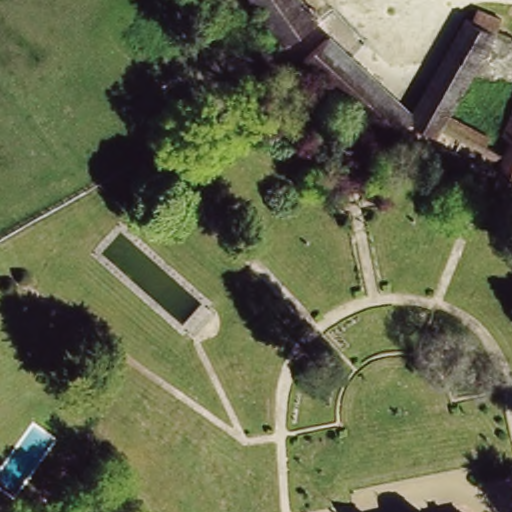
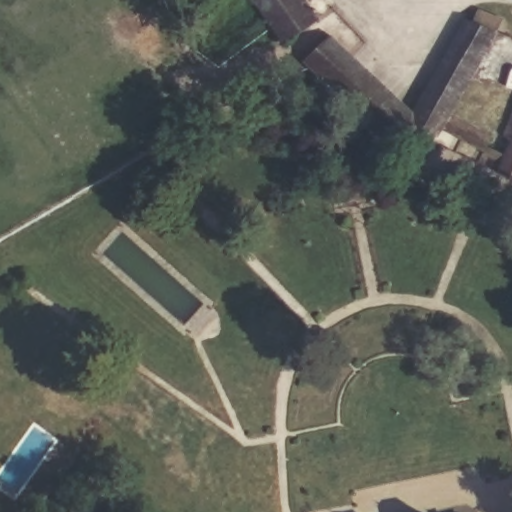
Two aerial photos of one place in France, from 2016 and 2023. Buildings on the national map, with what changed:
unchanged [(286,35),(259,0),(310,0),(318,11),(286,35)]
unchanged [(336,30),(414,107),(466,16),(476,21),(480,14),(489,19),(485,26),(493,30),(450,115),(484,130),(480,140),(444,126),(440,134),(429,123),(391,135),(313,51),(336,30)]
unchanged [(500,137),(512,104),(512,181),(493,172),(507,140),(500,137)]

